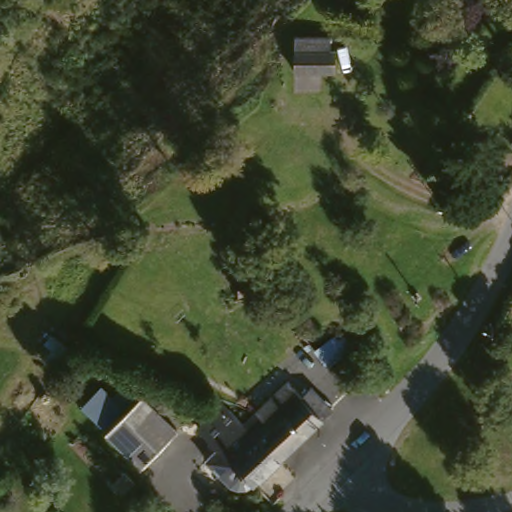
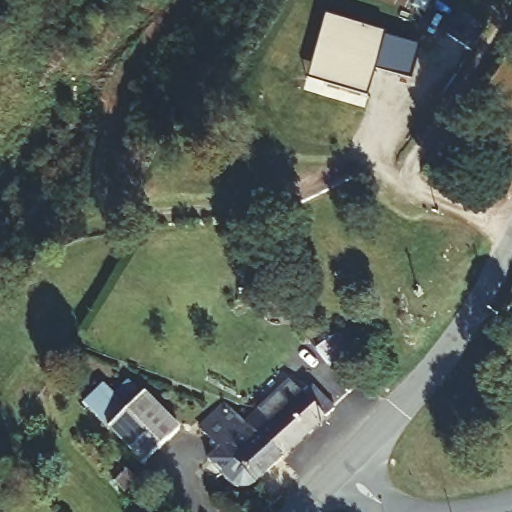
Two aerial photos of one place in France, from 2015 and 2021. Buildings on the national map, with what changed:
new [(458,15),(485,31),(470,53),(445,37),(458,15)]
new [(324,17),(383,35),(420,47),(410,82),(374,71),(366,100),(306,82),(324,17)]
demolished [(337,36),(338,57),(300,57),(301,34),(337,36)]
unchanged [(294,375),(308,390),(317,381),(343,411),(289,456),(268,433),(276,423),(264,414),(256,411),(294,375)]
unchanged [(181,430),(148,459),(115,420),(148,391),(181,430)]
unchanged [(215,462),(223,454),(204,434),(217,422),(213,418),(213,413),(213,412),(218,407),(223,407),(226,411),(229,409),(242,423),(245,421),(256,411),(264,414),(276,423),(268,433),(289,456),(259,482),(244,495),(215,462)]

